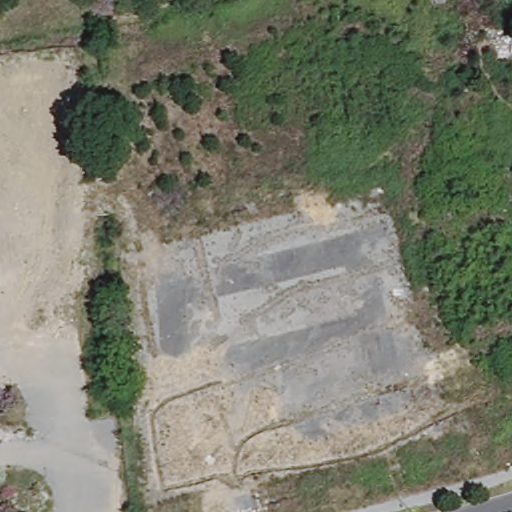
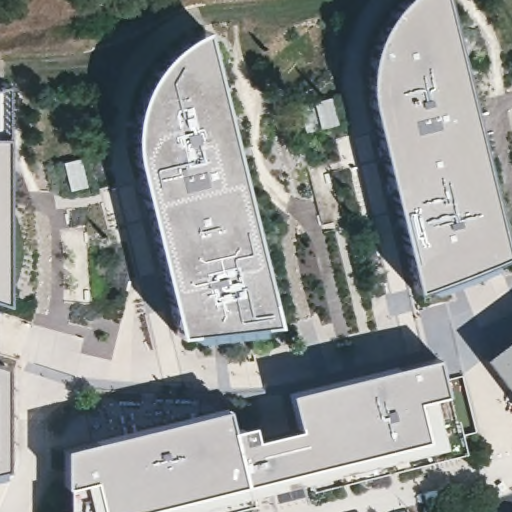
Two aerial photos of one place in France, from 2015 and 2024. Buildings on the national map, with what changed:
new [(500,252),(412,283),(367,96),(367,66),(376,37),(393,11),(404,0),(439,0),(500,252)]
new [(269,322),(178,332),(130,132),(138,100),(151,72),(172,49),(198,33),(269,322)]
new [(481,358),(512,334),(512,397),(481,358)]
new [(200,512),(61,512),(61,487),(63,452),(227,412),(234,442),(296,430),(289,395),(431,361),(456,446),(200,512)]

